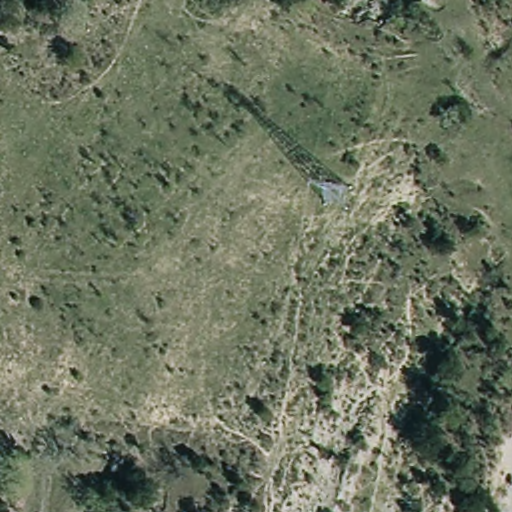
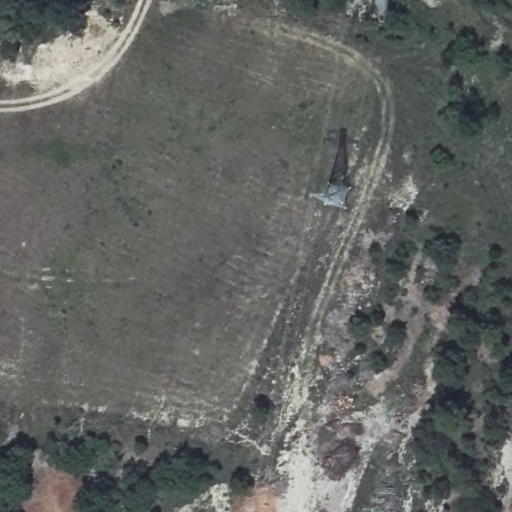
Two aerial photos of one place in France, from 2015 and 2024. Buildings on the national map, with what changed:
[]

